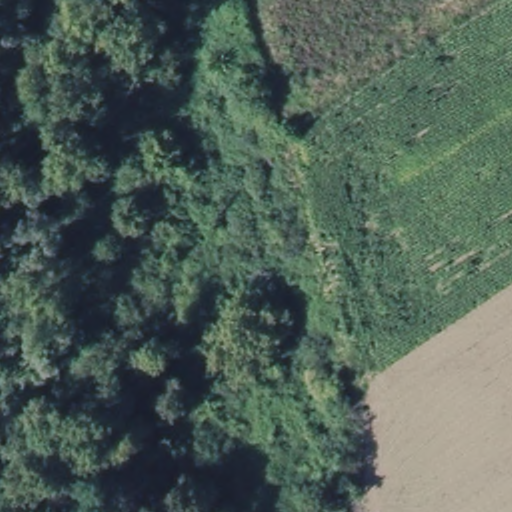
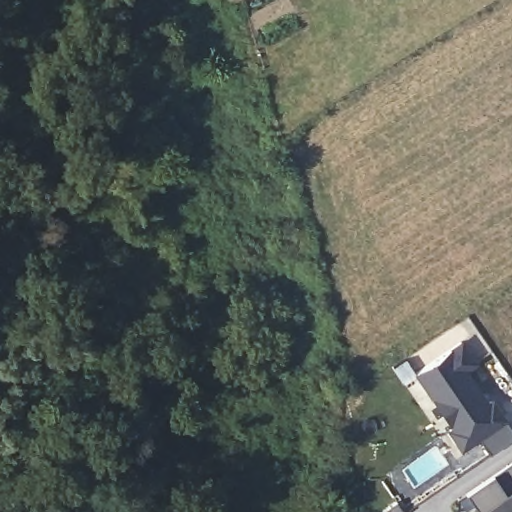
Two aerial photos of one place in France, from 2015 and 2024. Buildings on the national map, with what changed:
new [(475,366),(464,374),(488,408),(492,404),(512,433),(512,443),(490,458),(478,441),(462,452),(449,434),(455,430),(432,396),(430,397),(416,377),(461,346),(475,366)]
new [(510,503),(512,502),(512,512),(475,512),(467,500),(495,481),(510,503)]
new [(396,500),(404,512),(389,512),(386,507),(396,500)]

